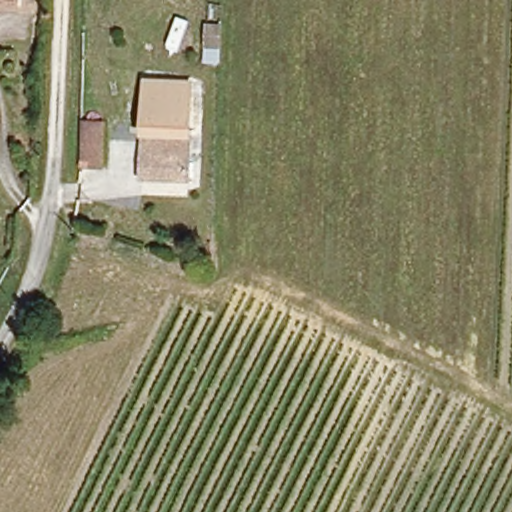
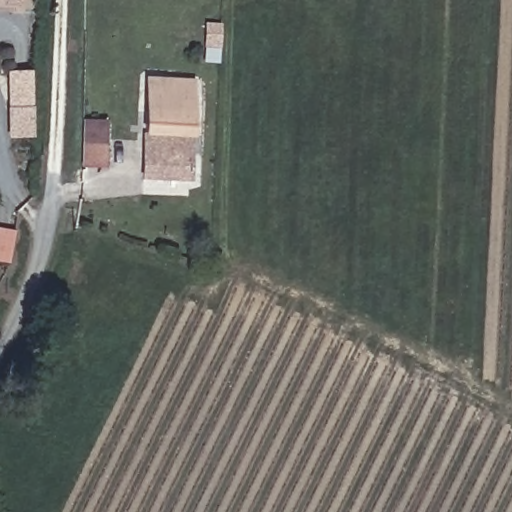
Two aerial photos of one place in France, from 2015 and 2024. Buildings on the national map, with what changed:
new [(7,139),(6,71),(31,71),(32,139),(7,139)]
unchanged [(139,174),(141,90),(141,77),(173,78),(189,78),(189,90),(189,110),(188,178),(139,174)]
unchanged [(79,121),(101,121),(99,166),(79,166),(79,121)]

